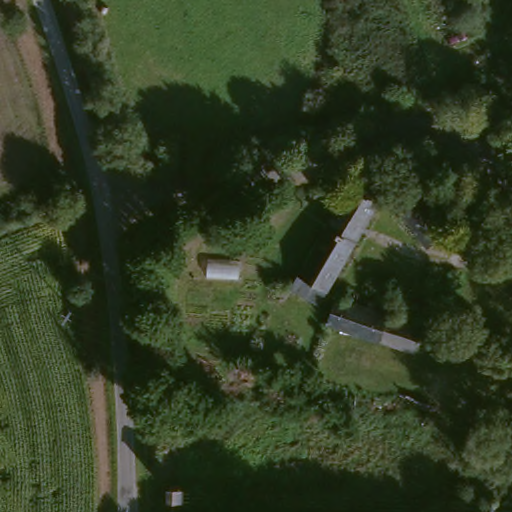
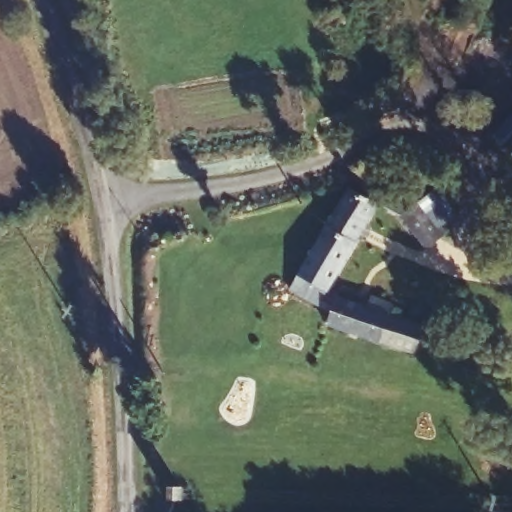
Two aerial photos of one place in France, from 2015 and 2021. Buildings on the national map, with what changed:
unchanged [(377,205),(356,243),(328,226),(349,189),(377,205)]
unchanged [(424,251),(399,217),(393,209),(389,204),(396,204),(416,194),(421,201),(447,235),(433,245),(424,251)]
unchanged [(356,243),(329,290),(327,293),(318,306),(291,289),(328,226),(356,243)]
unchanged [(329,325),(338,297),(366,306),(369,299),(371,297),(393,305),(390,315),(389,318),(382,343),(329,325)]
unchanged [(413,354),(382,343),(389,318),(390,315),(423,325),(413,354)]

